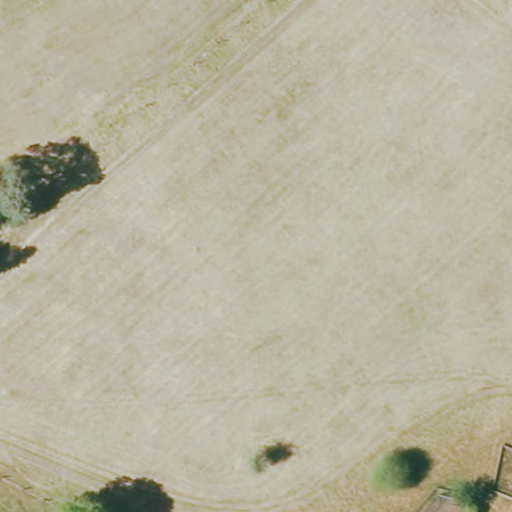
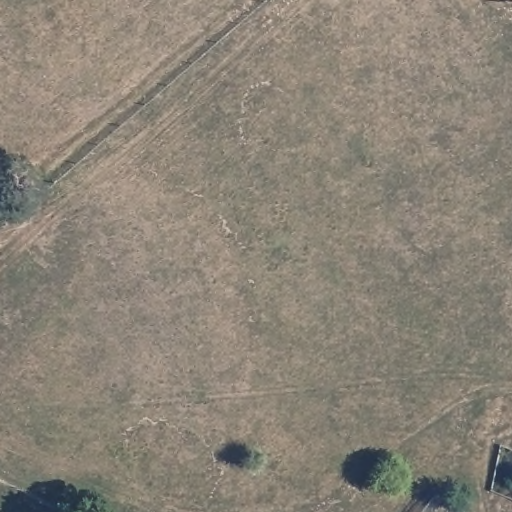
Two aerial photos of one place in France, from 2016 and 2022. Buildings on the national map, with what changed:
unchanged [(439,499),(467,506),(469,512),(427,512),(439,499)]

